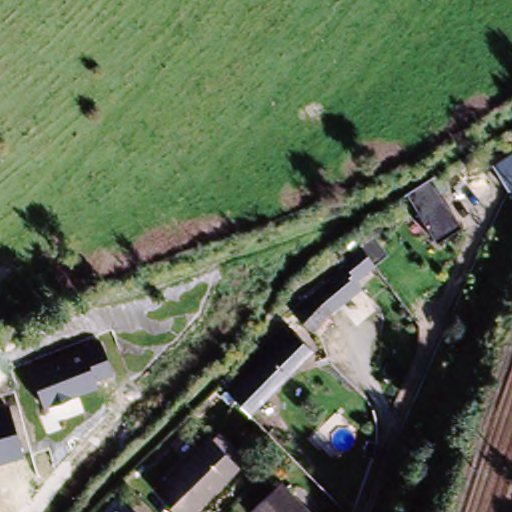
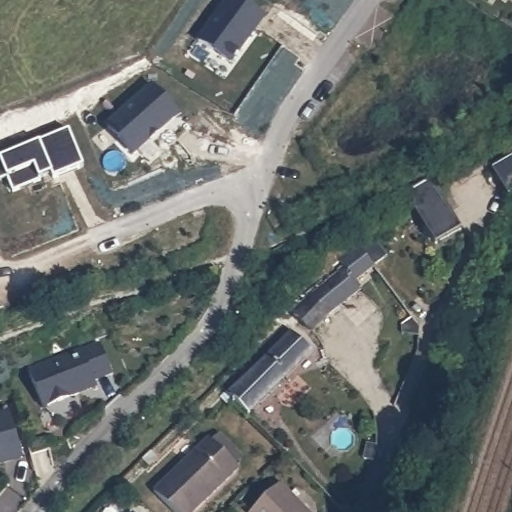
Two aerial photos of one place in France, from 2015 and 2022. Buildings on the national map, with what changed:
new [(227,0),(252,0),(267,11),(235,59),(201,36),(227,0)]
new [(133,156),(106,124),(152,85),(180,115),(133,156)]
new [(68,128),(82,165),(52,177),(50,173),(39,177),(40,180),(12,190),(6,175),(0,177),(0,154),(68,128)]
unchanged [(512,159),(512,190),(497,168),(512,159)]
unchanged [(403,200),(425,188),(428,186),(458,233),(433,249),(403,200)]
new [(346,278),(357,268),(348,258),(343,263),(340,257),(362,245),(375,238),(387,254),(375,264),(350,282),(346,278)]
unchanged [(357,268),(346,278),(353,286),(305,327),(287,312),(348,258),(357,268)]
unchanged [(101,339),(111,372),(94,379),(97,387),(45,407),(29,364),(101,339)]
unchanged [(238,376),(255,360),(263,368),(293,341),(310,360),(247,420),(230,400),(246,385),(238,376)]
unchanged [(10,407),(23,457),(0,464),(0,409),(10,407)]
unchanged [(195,512),(167,512),(152,497),(209,444),(237,473),(195,512)]
unchanged [(254,512),(281,488),(304,512),(254,512)]

